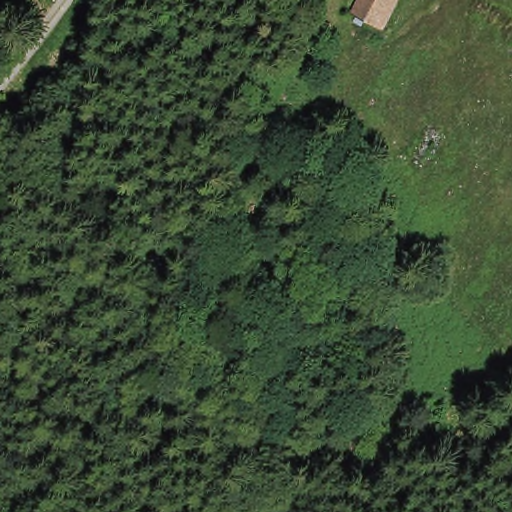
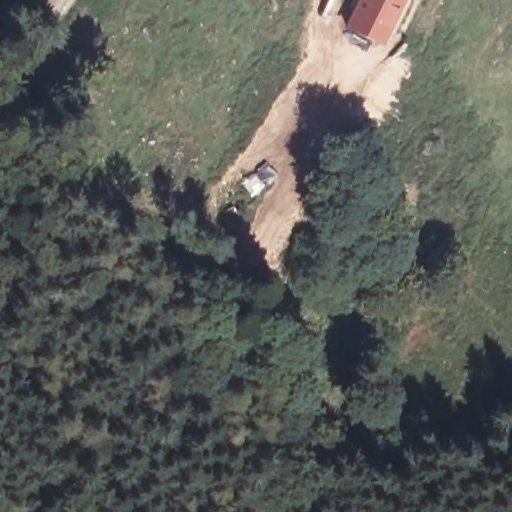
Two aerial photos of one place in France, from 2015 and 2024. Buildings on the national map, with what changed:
unchanged [(390,38),(360,27),(370,0),(404,0),(390,38)]

